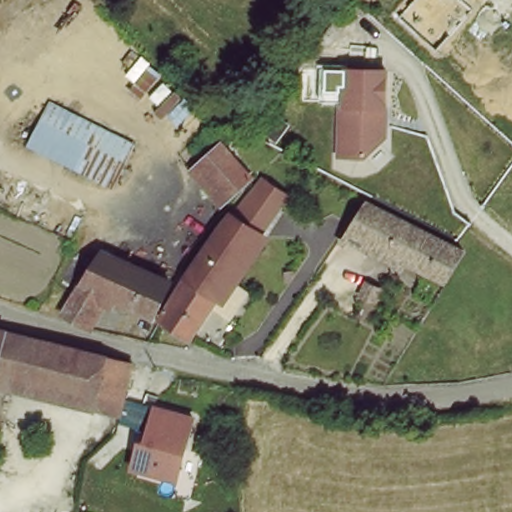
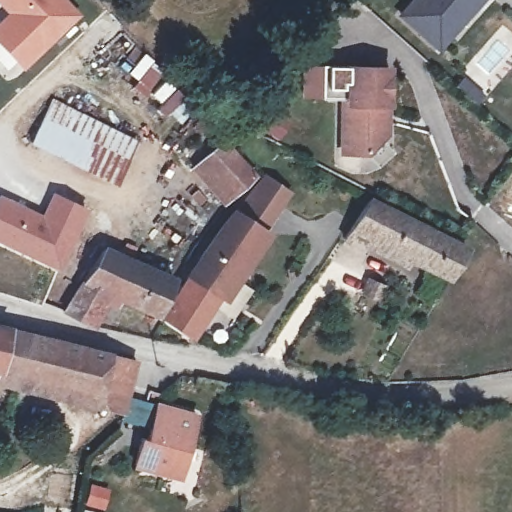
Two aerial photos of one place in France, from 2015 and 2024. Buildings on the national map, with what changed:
new [(27,70),(0,42),(0,32),(16,15),(1,0),(60,0),(78,19),(27,70)]
new [(489,0),(444,52),(407,17),(422,0),(489,0)]
unchanged [(388,103),(383,103),(381,137),(366,151),(361,151),(354,144),(341,143),(343,100),(348,100),(349,65),(389,66),(388,103)]
unchanged [(29,152),(49,101),(137,141),(113,189),(29,152)]
unchanged [(188,170),(227,139),(258,180),(223,210),(188,170)]
unchanged [(216,295),(184,340),(161,323),(220,232),(266,177),(274,183),(269,190),(285,201),(262,233),(216,295)]
new [(0,203),(29,216),(28,220),(35,224),(37,220),(43,223),(53,200),(85,215),(58,273),(0,246),(0,203)]
demolished [(0,234),(0,201),(8,201),(8,234),(0,234)]
unchanged [(350,237),(371,210),(456,255),(440,285),(350,237)]
unchanged [(274,241),(228,302),(216,295),(262,233),(274,241)]
unchanged [(108,298),(88,327),(63,310),(101,255),(166,286),(146,317),(108,298)]
unchanged [(385,306),(369,298),(375,285),(392,292),(385,306)]
unchanged [(0,333),(136,364),(123,405),(1,375),(0,375),(0,333)]
unchanged [(0,393),(0,388),(1,375),(123,405),(120,420),(0,393)]
unchanged [(169,473),(133,466),(136,453),(138,438),(144,439),(150,403),(183,410),(190,411),(181,464),(178,475),(169,473)]

